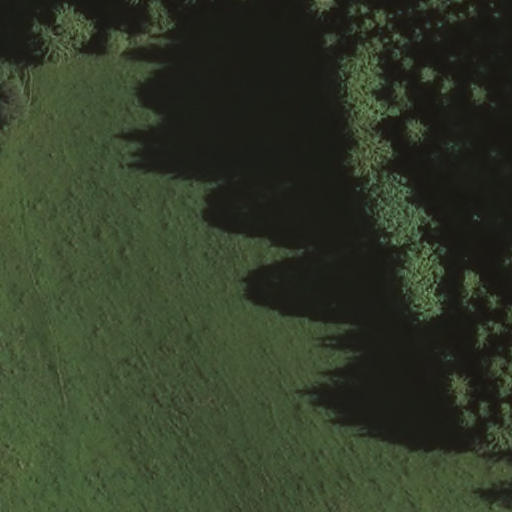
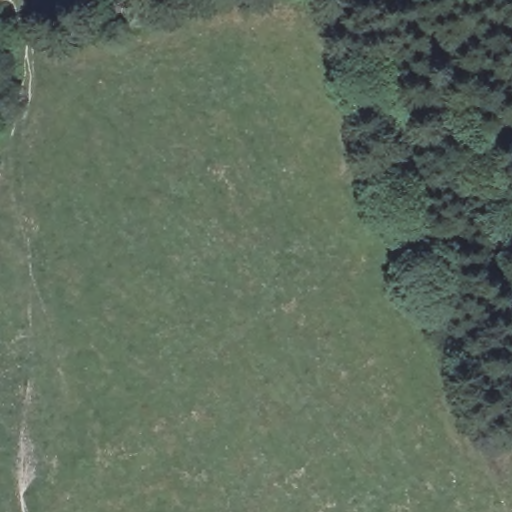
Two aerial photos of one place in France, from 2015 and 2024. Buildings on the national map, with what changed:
[]

